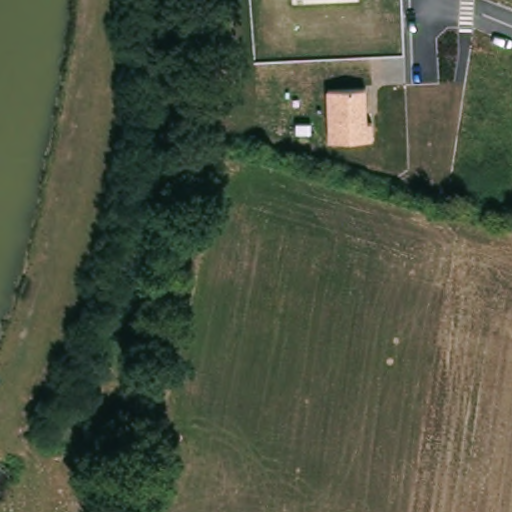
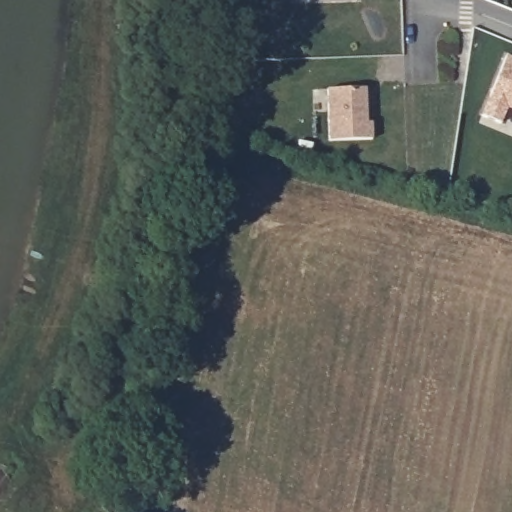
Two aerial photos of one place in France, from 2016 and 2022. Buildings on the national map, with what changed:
new [(500,122),(482,116),(505,55),(512,57),(512,109),(506,107),(500,122)]
unchanged [(326,90),(367,88),(368,123),(374,123),(374,141),(329,142),(326,90)]

